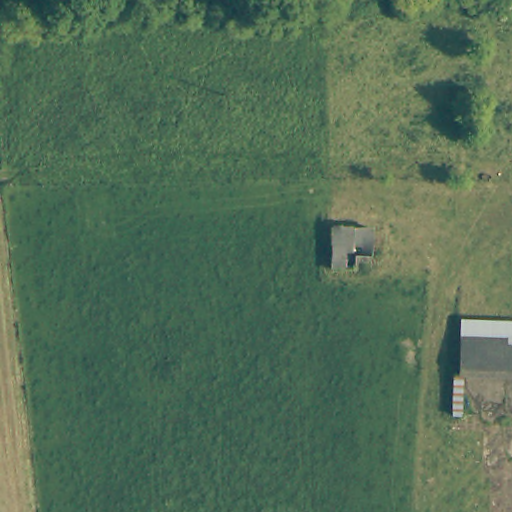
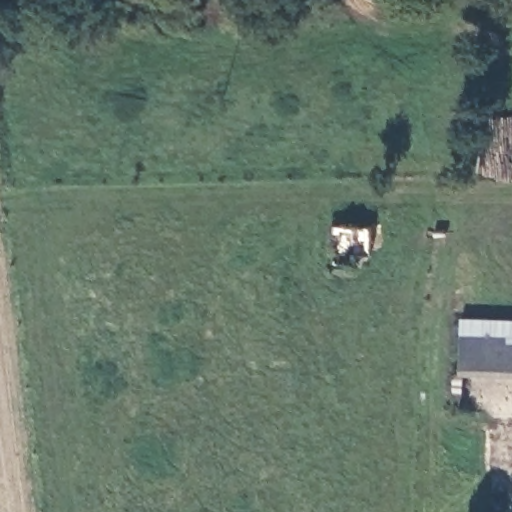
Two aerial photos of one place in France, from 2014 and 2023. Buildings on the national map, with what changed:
unchanged [(373,225),(371,256),(356,255),(356,271),(331,270),(330,224),(373,225)]
unchanged [(457,372),(458,334),(460,319),(512,321),(512,377),(463,376),(461,417),(451,416),(453,373),(457,372)]

